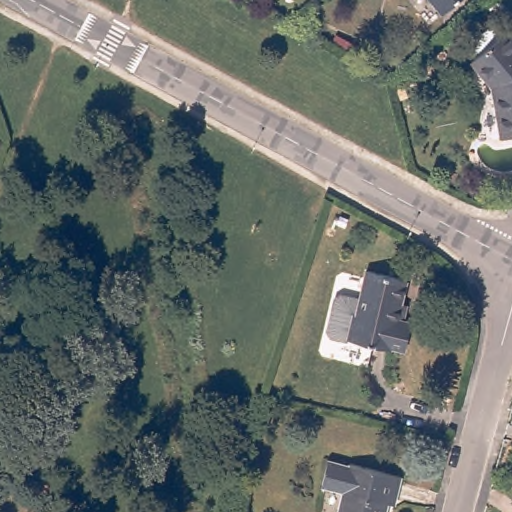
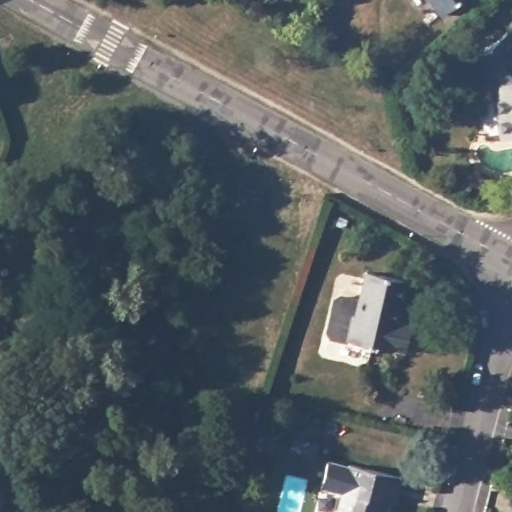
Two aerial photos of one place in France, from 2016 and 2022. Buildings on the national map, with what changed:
unchanged [(424,0),(467,0),(441,21),(424,0)]
unchanged [(507,32),(512,39),(512,138),(502,140),(492,89),(470,61),(507,32)]
unchanged [(402,327),(411,329),(403,355),(390,352),(390,355),(332,342),(328,336),(336,304),(341,301),(361,306),(367,278),(406,287),(400,312),(405,314),(402,327)]
unchanged [(322,487),(328,461),(350,467),(351,464),(401,477),(393,505),(387,504),(384,512),(339,512),(343,493),(322,487)]

